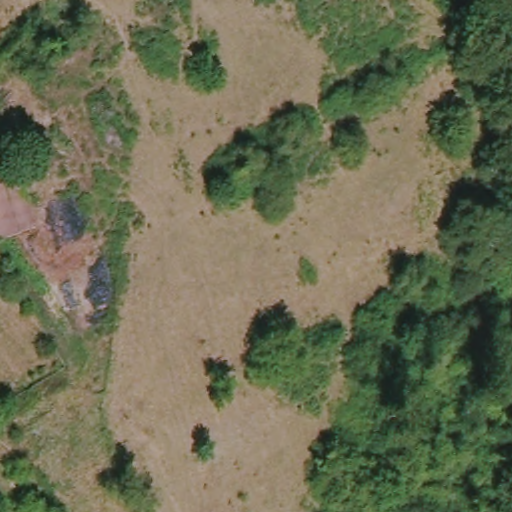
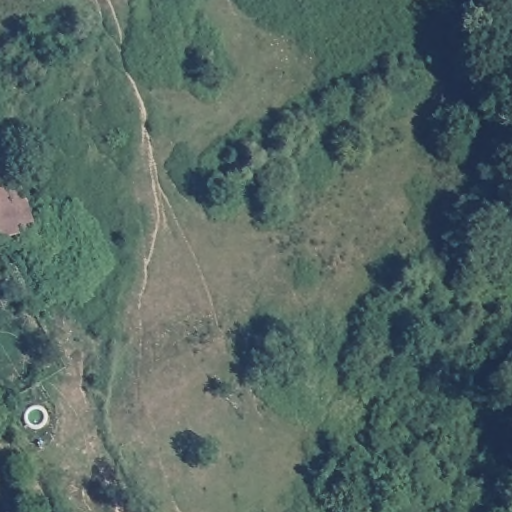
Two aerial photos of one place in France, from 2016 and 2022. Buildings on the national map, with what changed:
unchanged [(0,166),(17,223),(3,227),(6,237),(0,239),(0,166)]

